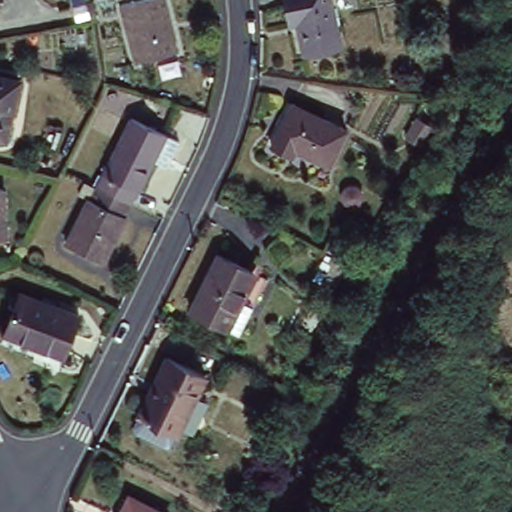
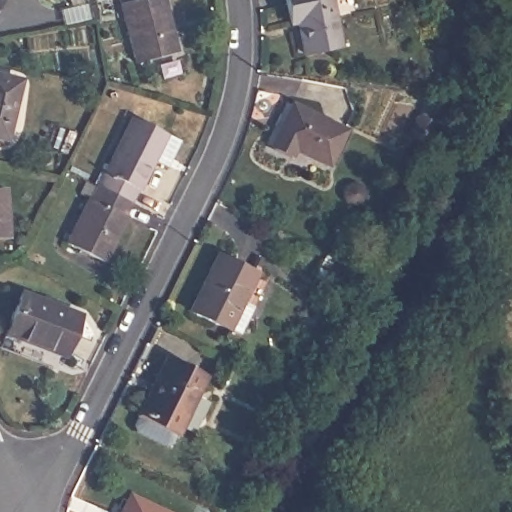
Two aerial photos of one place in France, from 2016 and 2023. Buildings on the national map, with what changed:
unchanged [(4,0),(0,5),(0,0),(4,0)]
unchanged [(167,21),(174,48),(135,58),(121,0),(164,0),(169,21),(167,21)]
unchanged [(298,49),(291,17),(284,19),(280,0),(325,0),(333,41),(298,49)]
unchanged [(23,80),(9,139),(0,137),(0,75),(23,80)]
unchanged [(345,125),(327,160),(295,144),(291,151),(270,141),(291,99),(345,125)]
unchanged [(419,143),(405,134),(416,116),(430,124),(419,143)]
unchanged [(125,118),(173,141),(160,167),(147,160),(132,190),(130,189),(124,203),(91,187),(125,118)]
unchanged [(362,198),(359,202),(354,205),(348,205),(343,203),(340,198),(340,192),(343,187),(347,184),(353,184),(358,186),(361,192),(362,198)]
unchanged [(117,216),(120,217),(97,263),(60,244),(82,199),(85,199),(91,187),(124,203),(117,216)]
unchanged [(2,188),(6,239),(0,239),(0,188),(2,188)]
unchanged [(261,279),(247,307),(233,335),(184,311),(212,254),(247,272),(261,279)]
unchanged [(68,310),(53,352),(0,331),(0,312),(9,288),(68,310)]
unchanged [(204,372),(177,428),(139,409),(166,354),(204,372)]
unchanged [(163,511),(163,512),(112,512),(123,491),(163,511)]

